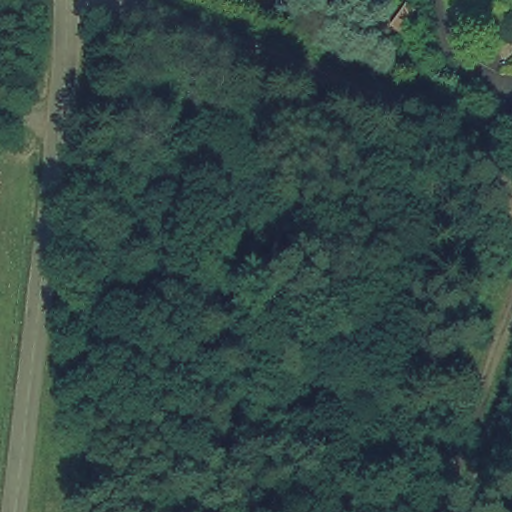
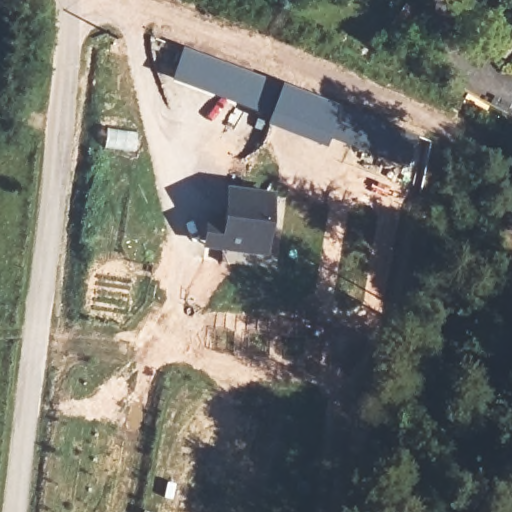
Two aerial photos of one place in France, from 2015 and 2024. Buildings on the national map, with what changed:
new [(183,48),(267,79),(254,114),(170,81),(183,48)]
new [(267,79),(279,83),(363,114),(423,139),(407,186),(396,182),(401,171),(302,126),(300,132),(311,138),(310,141),(281,130),(254,114),(267,79)]
new [(224,225),(227,188),(276,193),(272,259),(205,252),(210,222),(224,225)]

